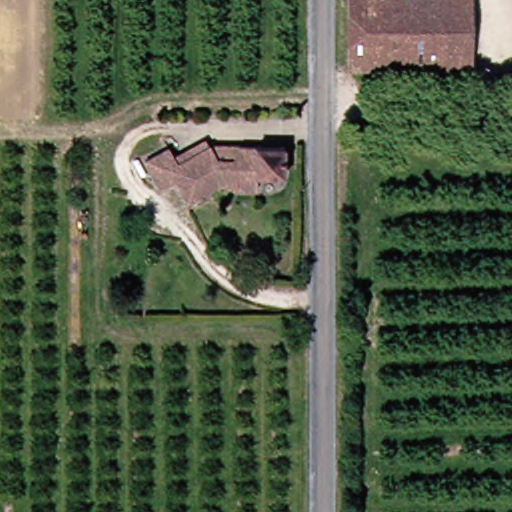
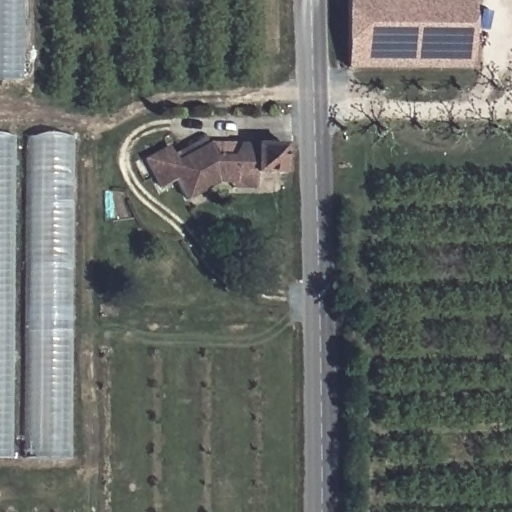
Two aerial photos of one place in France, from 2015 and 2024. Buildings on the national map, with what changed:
new [(0,80),(0,0),(23,0),(22,80),(0,80)]
unchanged [(343,0),(438,0),(438,71),(343,70),(343,0)]
unchanged [(438,71),(438,0),(465,0),(464,71),(438,71)]
new [(74,457),(0,459),(0,137),(75,137),(74,457)]
unchanged [(212,185),(178,202),(167,183),(152,191),(137,162),(161,150),(168,164),(202,146),(230,146),(274,146),(274,172),(247,172),(246,189),(226,188),(226,185),(212,185)]

